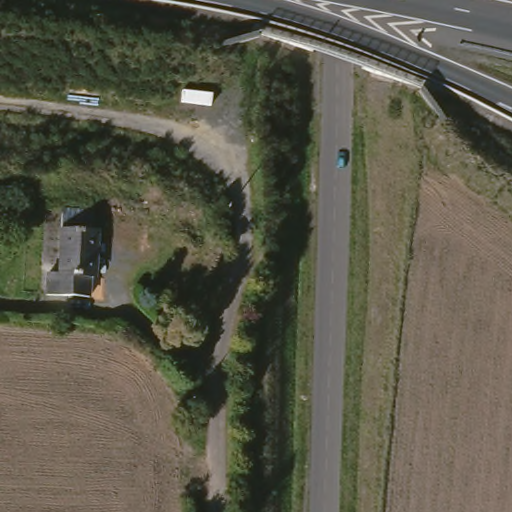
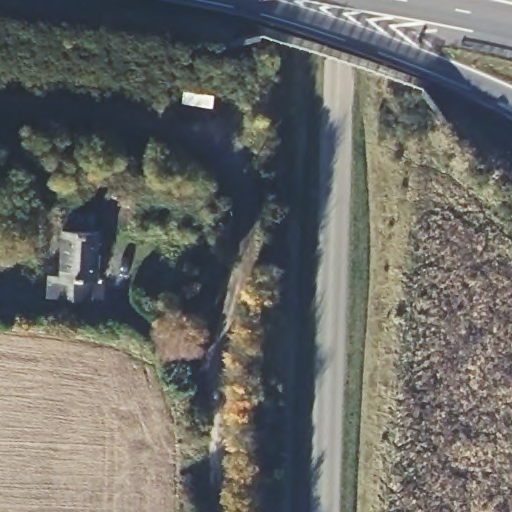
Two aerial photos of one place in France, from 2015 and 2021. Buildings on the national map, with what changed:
unchanged [(111,225),(107,274),(101,275),(101,293),(54,293),(55,273),(67,273),(68,227),(111,225)]

